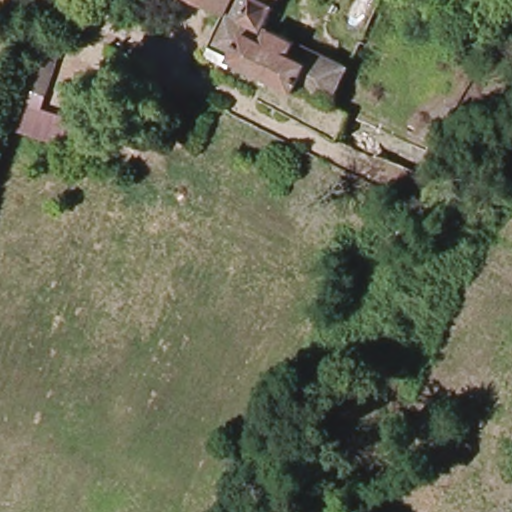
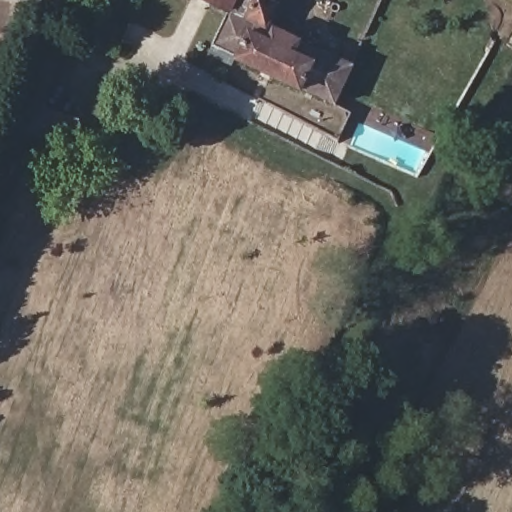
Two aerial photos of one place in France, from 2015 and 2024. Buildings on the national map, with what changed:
unchanged [(268,27),(343,63),(346,56),(355,61),(334,105),(211,46),(227,12),(202,0),(280,0),(268,27)]
unchanged [(53,49),(33,107),(76,122),(68,147),(11,128),(25,87),(22,86),(36,43),(53,49)]

